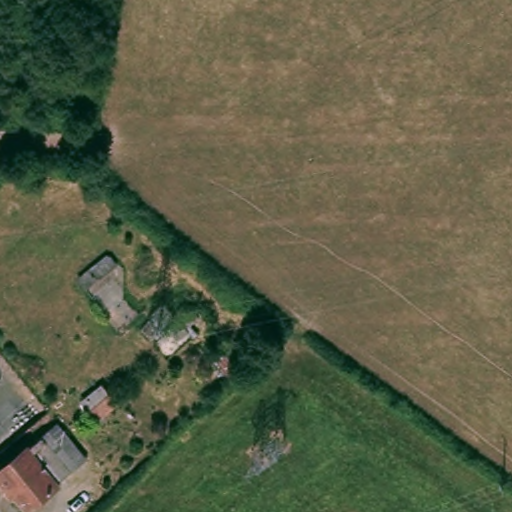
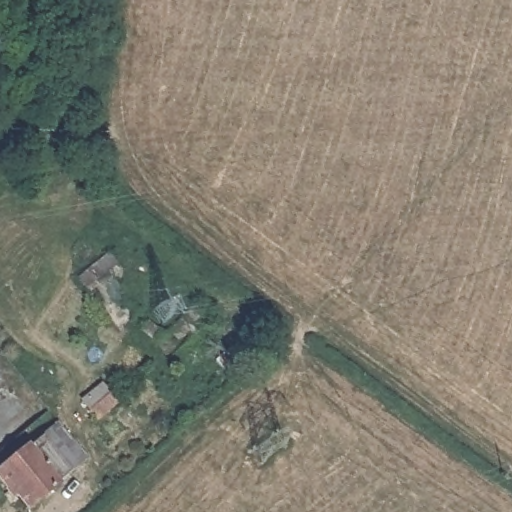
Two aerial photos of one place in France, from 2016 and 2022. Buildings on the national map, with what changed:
unchanged [(57,449),(76,471),(31,510),(15,490),(12,492),(0,478),(0,472),(45,433),(47,435),(56,427),(67,440),(57,449)]

